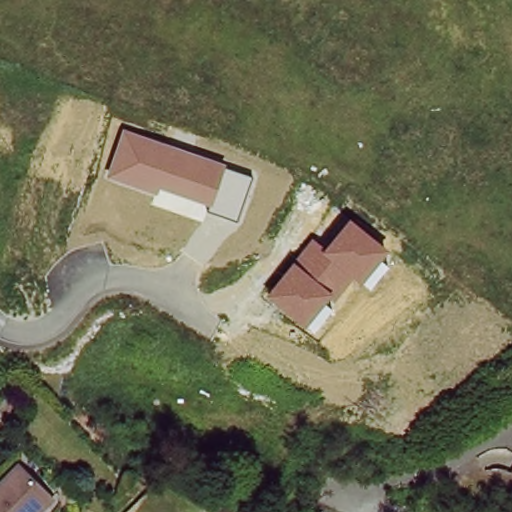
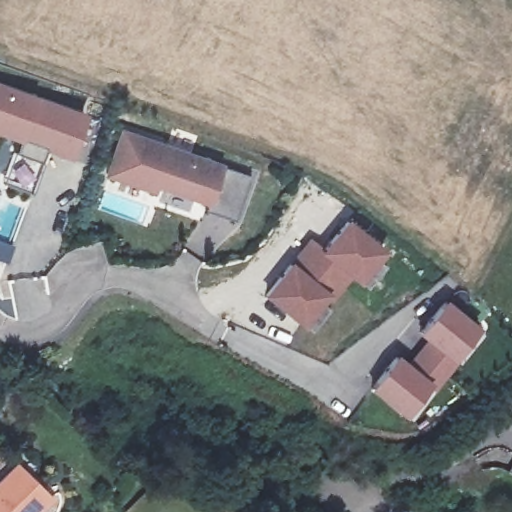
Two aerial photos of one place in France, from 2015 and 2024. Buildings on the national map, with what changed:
new [(40,97),(86,113),(70,158),(46,149),(41,160),(18,151),(20,140),(0,132),(0,83),(40,97)]
unchanged [(123,129),(225,161),(223,167),(252,177),(237,221),(207,210),(209,206),(160,187),(158,195),(107,177),(123,129)]
unchanged [(313,236),(325,247),(348,218),(387,249),(379,260),(387,266),(370,288),(362,281),(360,284),(354,280),(336,302),(328,297),(323,304),(330,310),(311,334),(265,296),(313,236)]
new [(398,355),(412,365),(429,343),(419,335),(446,300),(479,328),(454,359),(462,365),(442,393),(429,383),(405,417),(370,389),(398,355)]
unchanged [(48,491),(31,510),(34,512),(0,512),(0,480),(18,463),(48,491)]

